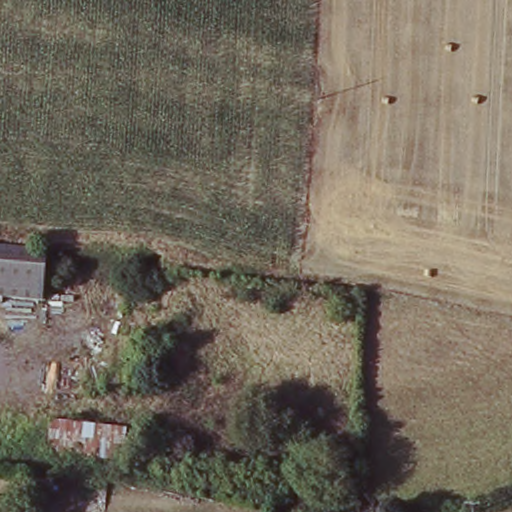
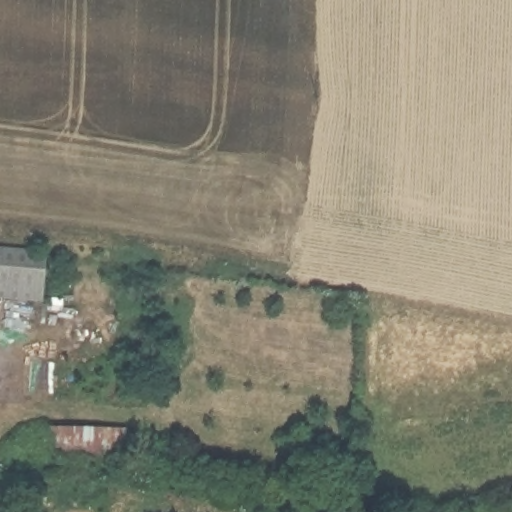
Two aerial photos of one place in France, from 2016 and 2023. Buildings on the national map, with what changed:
unchanged [(43,290),(0,286),(0,247),(47,251),(43,290)]
unchanged [(130,426),(129,455),(46,447),(47,418),(130,426)]

